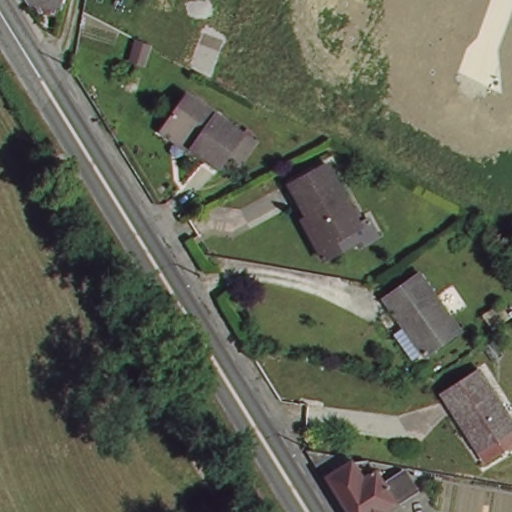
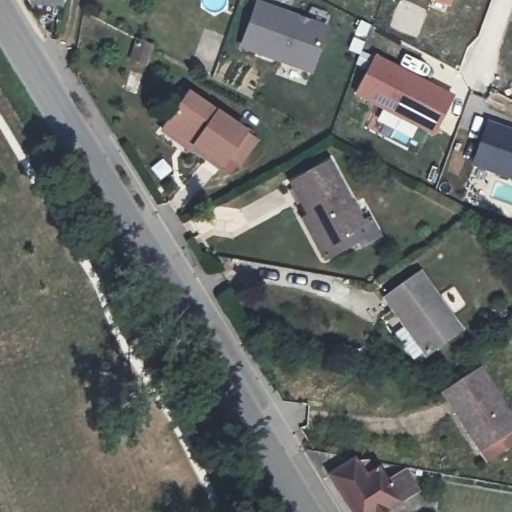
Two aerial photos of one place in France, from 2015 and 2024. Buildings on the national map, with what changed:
unchanged [(50,11),(16,5),(13,0),(53,0),(50,11)]
new [(238,47),(254,0),(329,26),(310,75),(238,47)]
new [(449,7),(430,0),(452,0),(449,7)]
new [(433,136),(353,94),(373,54),(453,95),(433,136)]
unchanged [(228,155),(221,165),(192,144),(188,149),(162,130),(166,125),(189,93),(244,132),(254,139),(238,162),(228,155)]
new [(486,122),(512,131),(512,181),(470,165),(486,122)]
unchanged [(330,262),(309,223),(314,220),(296,188),(333,168),(366,229),(356,235),(361,245),(330,262)]
unchanged [(384,298),(419,272),(461,330),(426,355),(424,352),(414,360),(394,334),(404,326),(384,298)]
unchanged [(512,425),(512,434),(480,454),(444,398),(480,375),(512,425)]
unchanged [(369,475),(386,466),(406,509),(401,512),(347,512),(331,483),(360,462),(369,475)]

